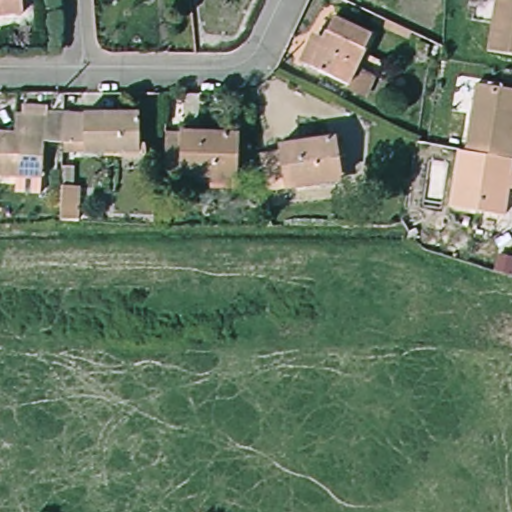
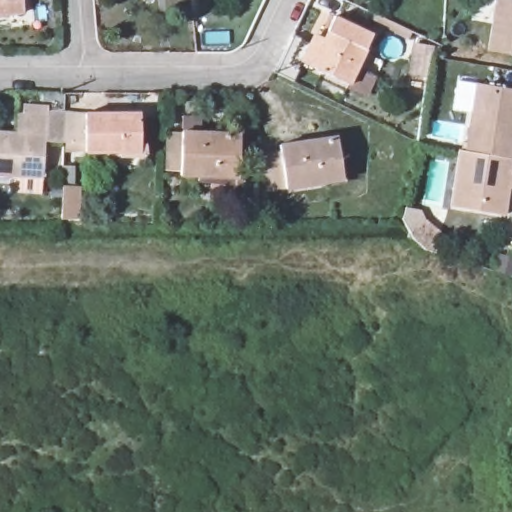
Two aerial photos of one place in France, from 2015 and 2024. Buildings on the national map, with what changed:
unchanged [(23,12),(0,14),(0,0),(22,0),(23,12)]
unchanged [(493,0),(512,0),(512,59),(487,55),(493,0)]
unchanged [(375,33),(351,86),(302,62),(310,43),(322,49),(337,16),(375,33)]
unchanged [(464,152),(474,85),(512,91),(512,160),(511,159),(464,152)]
unchanged [(42,141),(40,178),(0,177),(0,131),(12,131),(13,111),(44,112),(45,108),(61,109),(61,142),(42,141)]
unchanged [(61,109),(135,113),(134,153),(81,152),(81,143),(61,142),(61,109)]
unchanged [(245,128),(245,182),(217,182),(217,171),(191,171),(191,167),(175,167),(175,128),(245,128)]
unchanged [(332,137),(338,183),(281,190),(274,145),(332,137)]
unchanged [(464,152),(511,159),(502,219),(450,210),(459,152),(464,152)]

